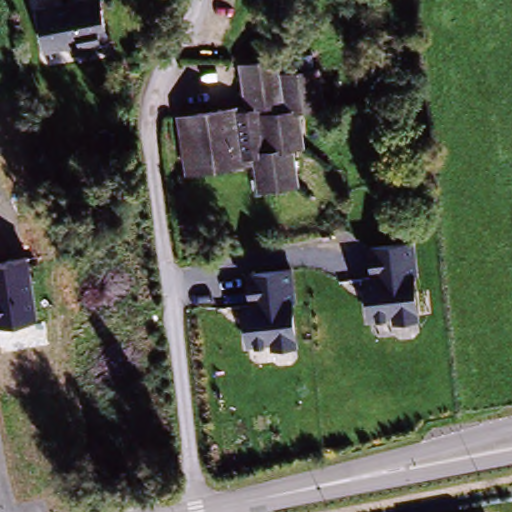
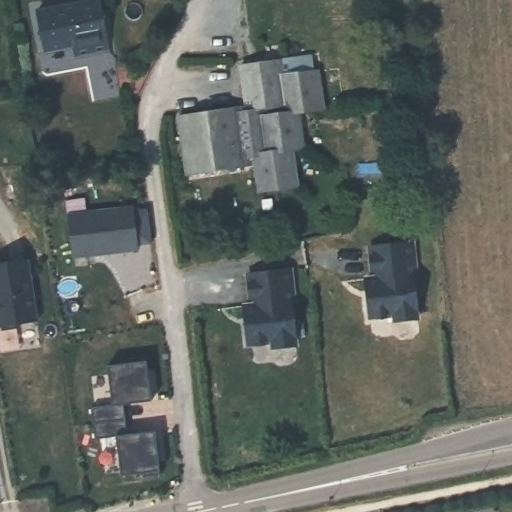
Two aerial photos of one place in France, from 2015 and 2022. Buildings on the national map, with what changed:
unchanged [(77,48),(75,37),(42,42),(33,1),(40,0),(97,0),(105,40),(77,48)]
unchanged [(327,109),(303,112),(307,147),(295,149),(298,187),(262,194),(257,159),(192,170),(186,120),(250,110),(247,76),(285,70),(285,76),(325,71),(327,109)]
new [(132,211),(138,252),(75,262),(70,220),(132,211)]
unchanged [(373,285),(380,284),(377,254),(419,249),(423,279),(420,280),(425,323),(402,326),(402,321),(377,324),(373,285)]
unchanged [(29,256),(38,319),(0,325),(0,261),(29,256)]
unchanged [(251,309),(258,308),(255,278),(297,272),(302,303),(298,303),(303,347),(280,350),(280,345),(256,348),(251,309)]
new [(111,409),(105,370),(120,367),(120,364),(143,360),(150,404),(122,409),(127,435),(153,430),(160,475),(137,479),(136,475),(121,477),(115,438),(95,442),(92,427),(90,412),(111,409)]

